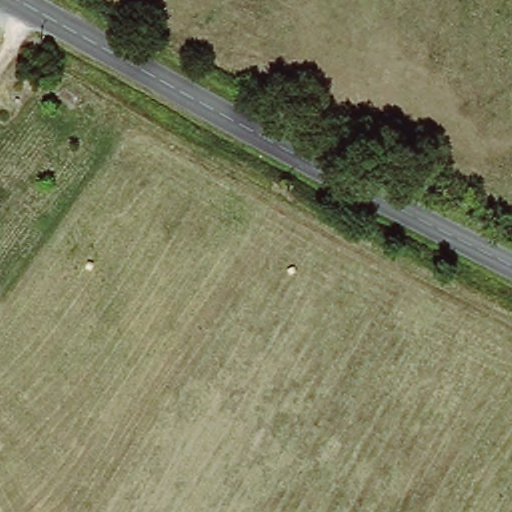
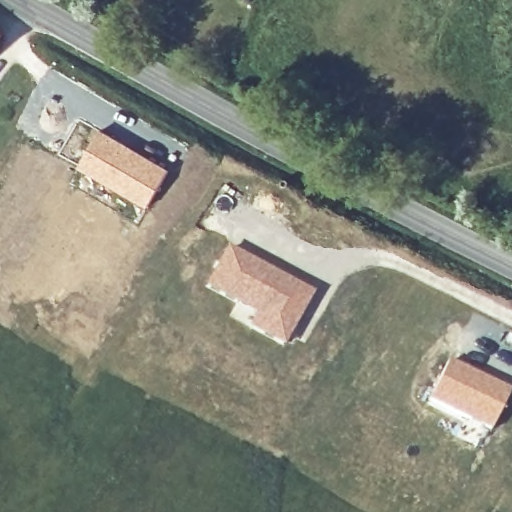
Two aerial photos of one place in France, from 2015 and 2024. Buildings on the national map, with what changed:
unchanged [(0,48),(0,44),(2,45),(0,48)]
new [(101,128),(172,169),(148,209),(79,165),(101,128)]
new [(227,247),(313,294),(283,351),(244,329),(250,319),(203,287),(227,247)]
new [(447,359),(511,391),(489,434),(426,403),(447,359)]

